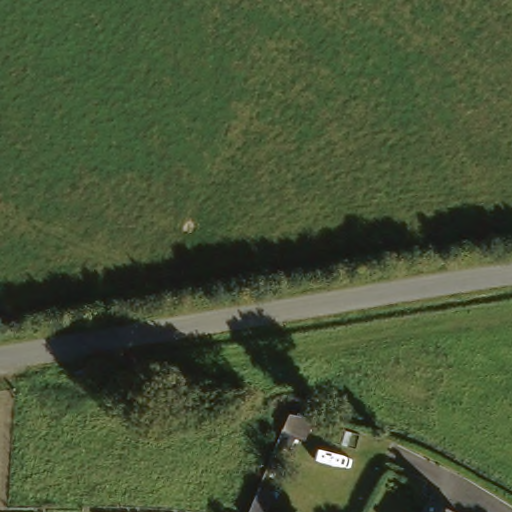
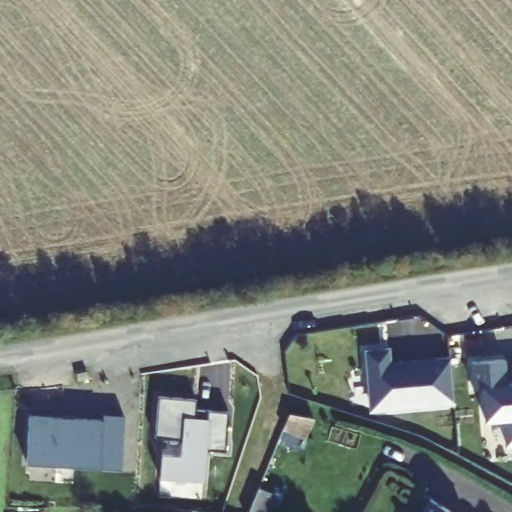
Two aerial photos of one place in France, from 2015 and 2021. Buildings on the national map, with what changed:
new [(391,362),(449,357),(454,404),(369,412),(365,350),(389,347),(391,362)]
new [(510,383),(512,383),(512,447),(506,447),(506,421),(484,422),(484,412),(482,412),(480,388),(473,388),(470,361),(505,357),(510,383)]
new [(195,410),(228,413),(225,452),(207,451),(204,483),(160,480),(162,455),(180,456),(182,440),(155,437),(159,397),(195,400),(195,410)]
new [(122,470),(26,464),(28,416),(100,420),(101,414),(123,416),(122,470)]
unchanged [(266,478),(256,507),(239,503),(250,472),(266,478)]
unchanged [(423,512),(429,497),(463,512),(423,512)]

